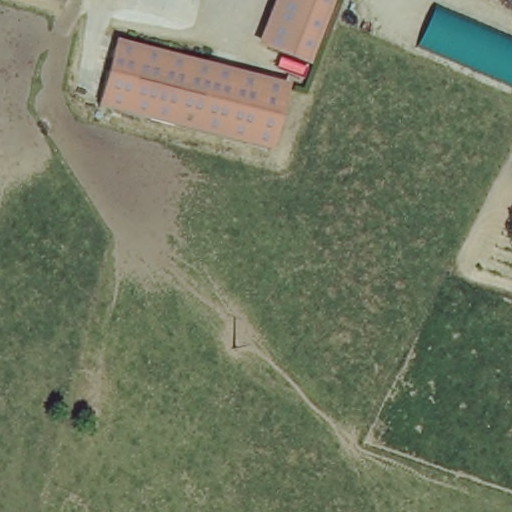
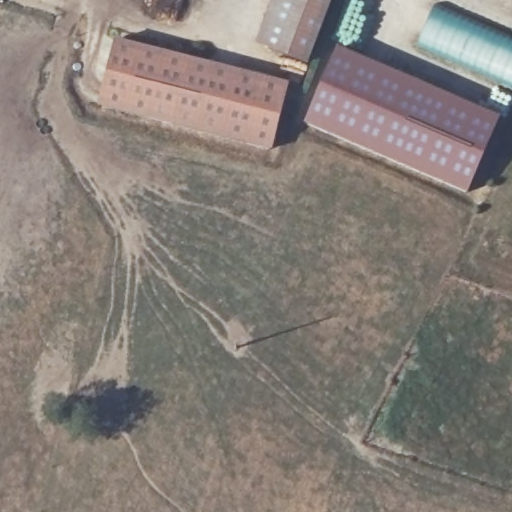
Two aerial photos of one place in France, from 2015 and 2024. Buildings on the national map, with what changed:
unchanged [(309,67),(258,46),(275,0),(334,0),(309,67)]
unchanged [(437,6),(512,38),(512,82),(419,43),(437,6)]
unchanged [(110,31),(279,80),(260,145),(91,96),(110,31)]
new [(500,116),(467,194),(304,124),(337,46),(500,116)]

